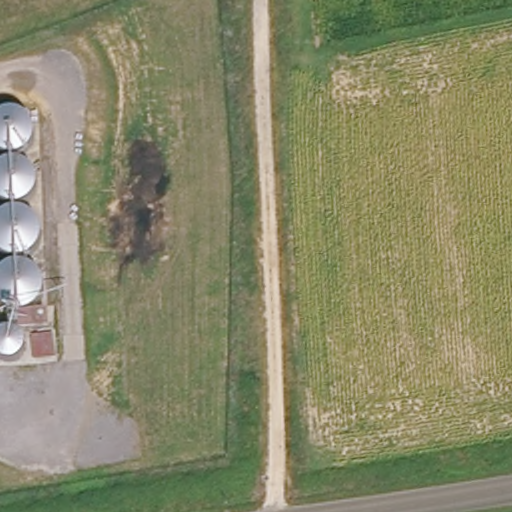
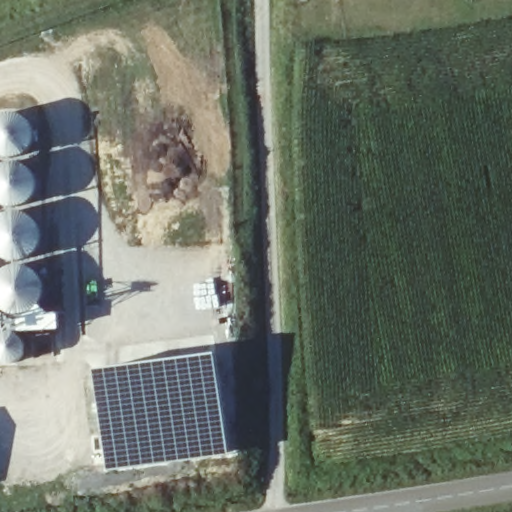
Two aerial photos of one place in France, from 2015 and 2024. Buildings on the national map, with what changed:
unchanged [(31,313),(28,314),(49,314),(50,330),(20,331),(24,338),(28,346),(27,353),(21,362),(13,364),(3,363),(0,360),(0,334),(1,333),(13,330),(13,315),(6,311),(0,306),(0,274),(6,268),(13,265),(13,261),(5,258),(0,255),(0,217),(5,214),(11,211),(10,207),(4,205),(0,202),(0,167),(9,162),(8,157),(1,155),(0,154),(0,118),(6,113),(18,113),(28,117),(35,125),(38,137),(33,149),(26,156),(21,158),(21,162),(31,166),(36,173),(39,181),(39,191),(35,200),(30,203),(22,207),(22,212),(30,214),(36,219),(41,226),(43,233),(43,240),(41,247),(35,254),(29,260),(24,261),(24,265),(31,267),(38,271),(43,277),(46,286),(45,297),(40,307),(31,313)]
new [(145,357),(217,348),(232,455),(106,473),(93,367),(145,357)]

